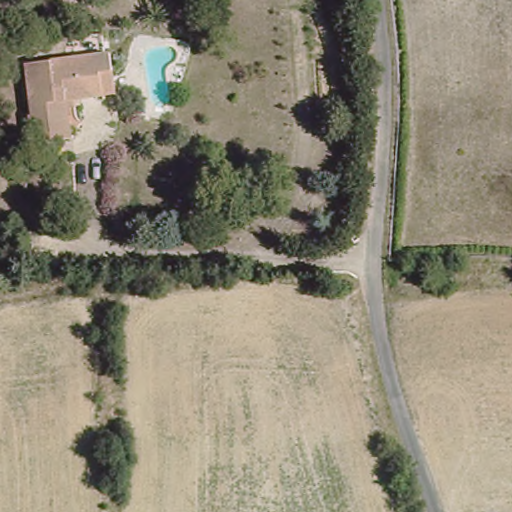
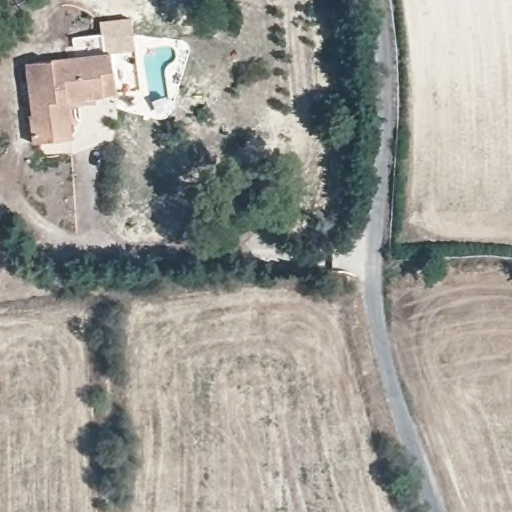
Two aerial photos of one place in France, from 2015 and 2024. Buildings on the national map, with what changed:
unchanged [(29,149),(19,65),(48,60),(112,50),(119,92),(67,101),(73,143),(29,149)]

